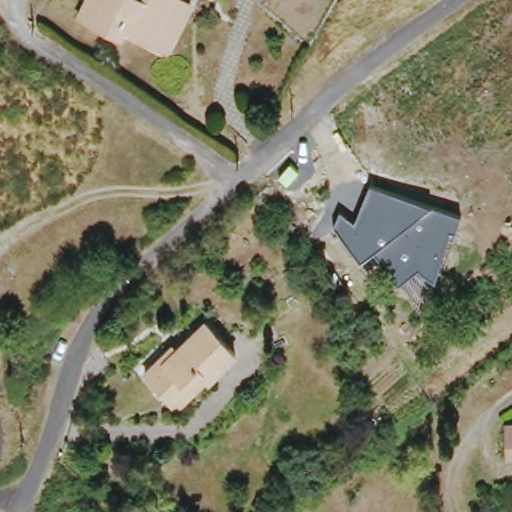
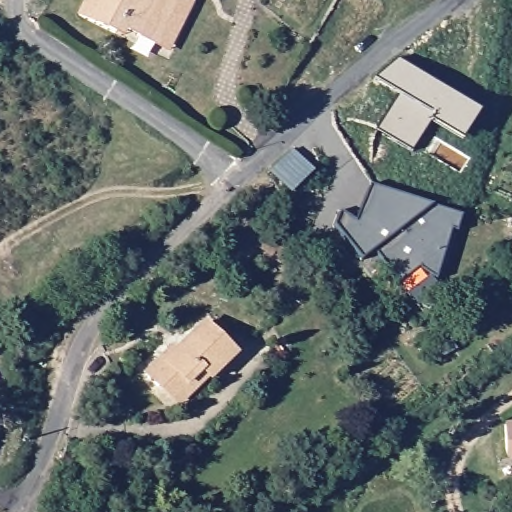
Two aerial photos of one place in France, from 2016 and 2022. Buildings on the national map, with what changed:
unchanged [(127,29),(123,35),(78,12),(85,0),(183,0),(194,6),(168,50),(127,29)]
new [(432,123),(412,152),(377,130),(399,95),(376,80),(398,60),(479,112),(461,142),(432,123)]
unchanged [(417,269),(399,284),(375,251),(361,261),(334,227),(339,213),(355,223),(371,187),(430,206),(461,216),(455,232),(449,231),(434,281),(417,269)]
unchanged [(150,374),(168,355),(173,359),(210,318),(242,352),(215,379),(218,382),(189,414),(150,374)]
unchanged [(509,424),(512,424),(512,455),(511,455),(509,424)]

